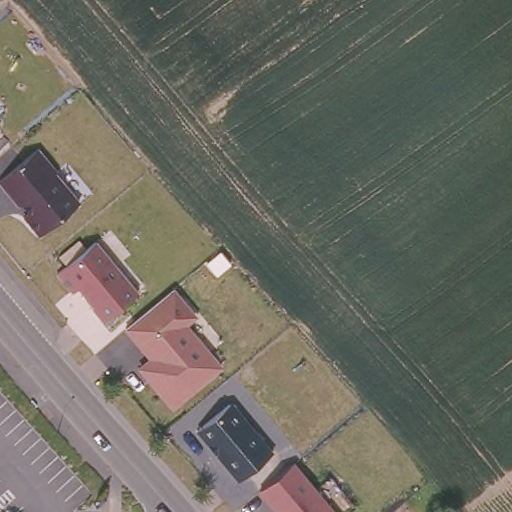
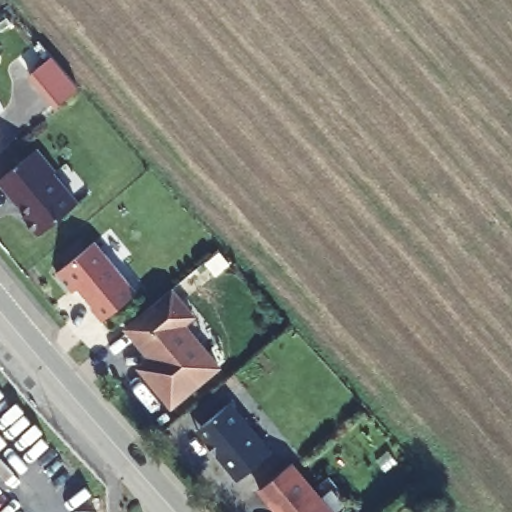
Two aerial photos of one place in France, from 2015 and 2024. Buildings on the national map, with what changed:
new [(28,74),(53,54),(79,88),(55,107),(28,74)]
unchanged [(16,221),(22,216),(14,207),(11,209),(0,196),(0,179),(30,153),(49,175),(46,177),(71,207),(33,240),(16,221)]
unchanged [(96,325),(86,313),(88,311),(73,293),(66,298),(50,278),(88,246),(131,297),(96,325)]
unchanged [(145,363),(119,332),(166,294),(188,320),(178,329),(213,371),(166,411),(143,384),(133,373),(145,363)]
unchanged [(231,485),(209,459),(213,456),(194,432),(223,408),(265,458),(231,485)]
unchanged [(322,512),(267,512),(253,494),(285,468),(322,512)]

